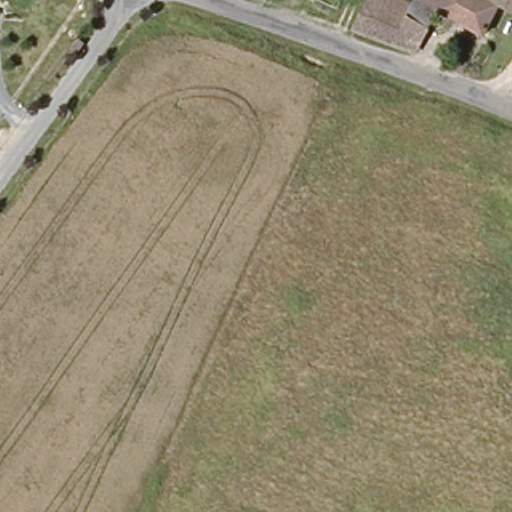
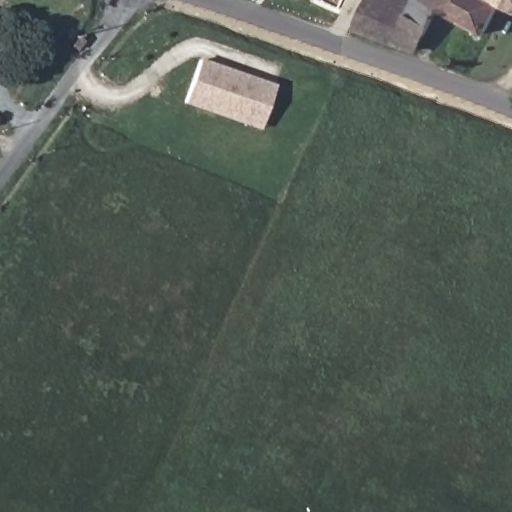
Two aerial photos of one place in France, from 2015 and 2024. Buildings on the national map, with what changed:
unchanged [(316,0),(344,0),(337,10),(316,0)]
unchanged [(382,0),(397,0),(414,7),(418,0),(485,0),(495,6),(479,33),(442,20),(420,57),(363,39),(382,0)]
unchanged [(495,6),(485,0),(505,0),(500,7),(497,6),(495,6)]
new [(248,127),(184,105),(199,64),(278,92),(270,113),(263,132),(248,127)]

